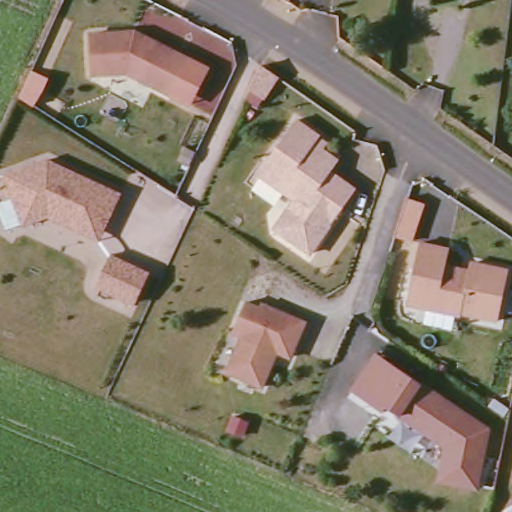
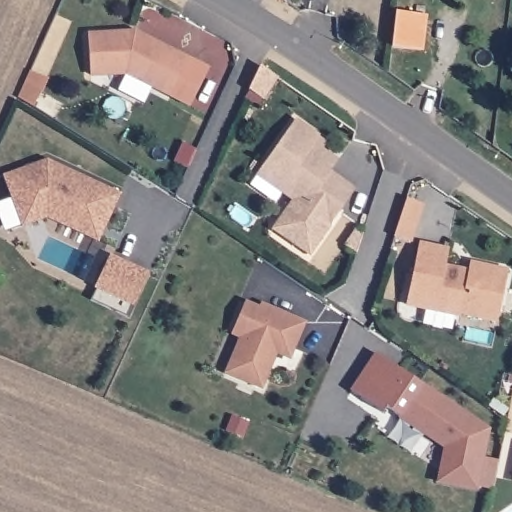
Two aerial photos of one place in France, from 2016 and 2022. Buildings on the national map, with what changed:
new [(398,15),(427,19),(423,53),(393,50),(398,15)]
unchanged [(137,31),(137,36),(144,39),(145,34),(192,58),(175,94),(130,71),(93,73),(91,33),(137,31)]
unchanged [(263,168),(294,124),(316,139),(325,145),(321,153),(336,164),(328,174),(354,193),(328,228),(287,199),(257,178),(263,168)]
unchanged [(38,219),(21,225),(15,208),(2,174),(33,162),(45,158),(58,164),(118,192),(110,211),(97,239),(46,216),(38,219)]
unchanged [(415,284),(423,247),(452,253),(449,269),(464,272),(463,280),(471,282),(473,265),(511,273),(501,324),(463,316),(462,319),(424,311),(410,308),(415,284)]
unchanged [(145,271),(131,302),(96,285),(109,256),(125,264),(125,262),(145,271)]
unchanged [(309,326),(293,361),(277,354),(273,360),(275,370),(265,391),(230,376),(244,340),(235,337),(249,305),(262,311),(264,307),(309,326)]
unchanged [(474,487),(436,481),(444,446),(384,406),(381,412),(349,391),(371,358),(375,352),(417,381),(486,428),(474,487)]

